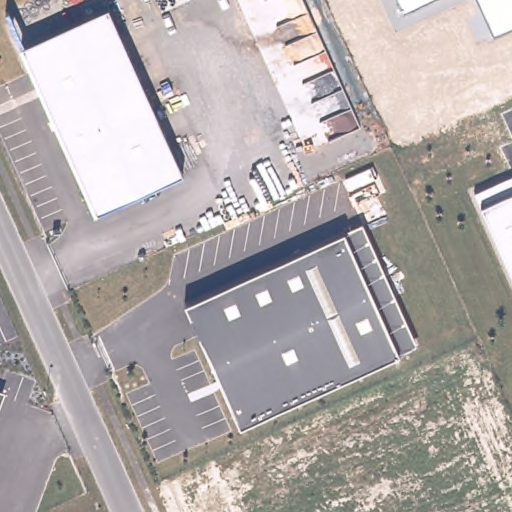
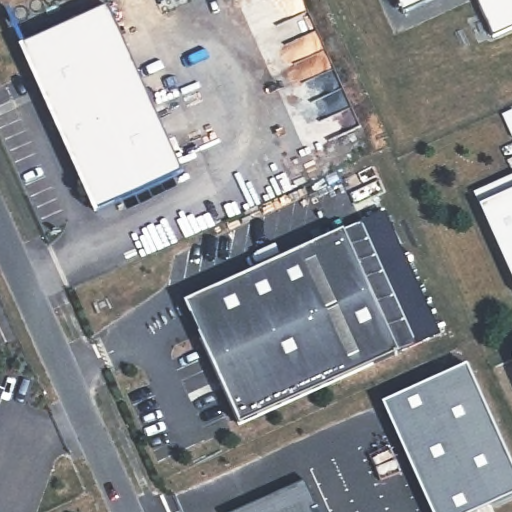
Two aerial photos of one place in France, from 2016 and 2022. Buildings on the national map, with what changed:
unchanged [(403,11),(398,0),(428,0),(403,11)]
unchanged [(493,35),(477,0),(512,0),(512,27),(493,35)]
unchanged [(181,173),(95,212),(21,47),(107,9),(181,173)]
unchanged [(475,191),(512,175),(512,275),(475,191)]
unchanged [(419,348),(400,356),(397,353),(239,427),(185,304),(362,222),(419,348)]
new [(512,445),(512,498),(479,512),(441,512),(393,397),(477,362),(512,445)]
unchanged [(0,411),(0,389),(7,391),(0,411)]
new [(324,512),(235,512),(310,480),(324,512)]

